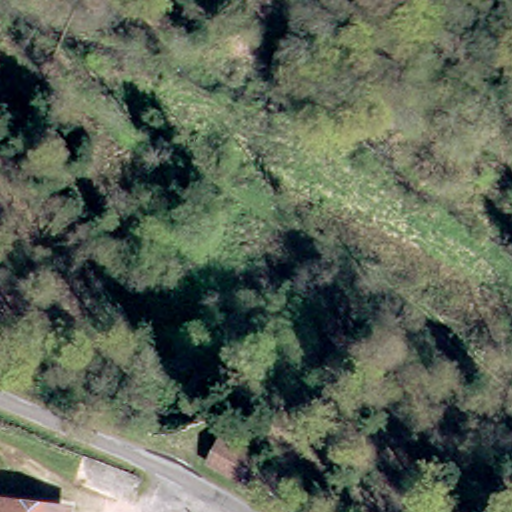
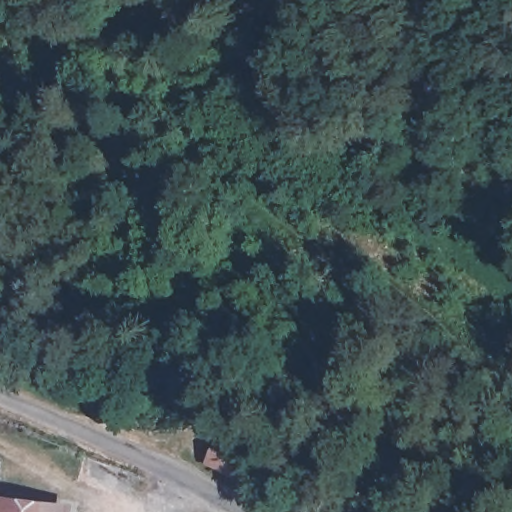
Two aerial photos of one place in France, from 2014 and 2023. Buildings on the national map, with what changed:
unchanged [(224,441),(255,458),(243,479),(212,462),(224,441)]
unchanged [(76,497),(75,512),(0,512),(0,490),(76,497)]

